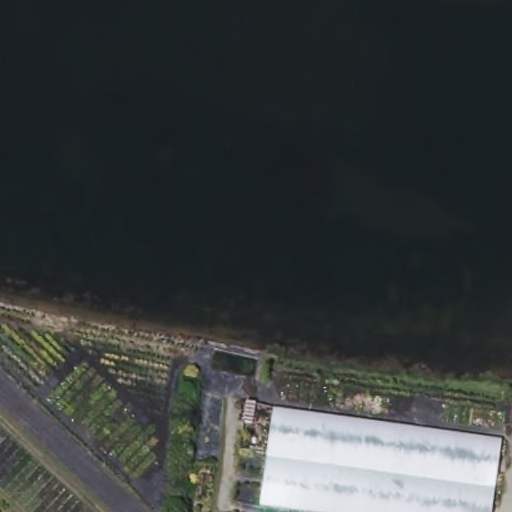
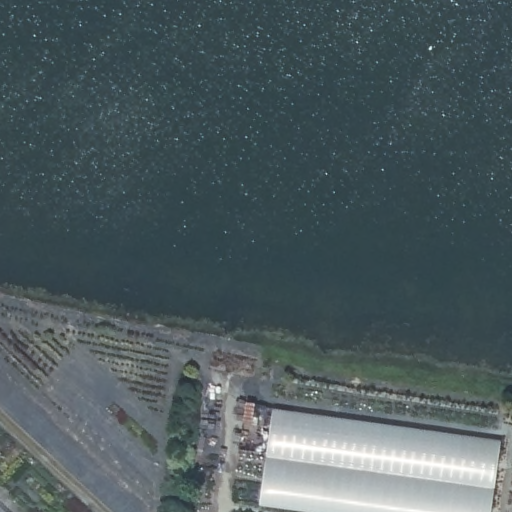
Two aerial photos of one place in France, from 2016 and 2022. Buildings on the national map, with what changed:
unchanged [(503,438),(494,512),(320,512),(261,504),(276,408),(503,438)]

